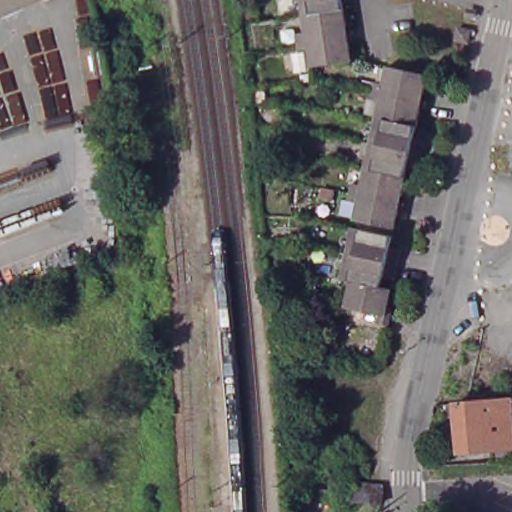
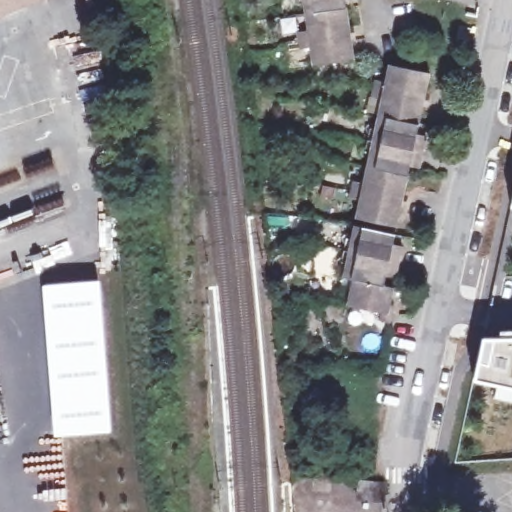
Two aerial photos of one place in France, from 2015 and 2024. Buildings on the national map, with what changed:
unchanged [(0,17),(0,0),(40,0),(0,17)]
unchanged [(312,48),(301,49),(299,32),(309,31),(304,0),(346,0),(355,59),(314,65),(312,48)]
unchanged [(464,27),(475,29),(472,40),(461,37),(464,27)]
unchanged [(361,204),(350,202),(355,185),(365,188),(384,103),(373,100),(377,83),(387,86),(391,69),(432,77),(418,138),(428,140),(422,172),(412,170),(397,231),(357,221),(361,204)]
new [(511,206),(512,201),(512,206),(511,206)]
unchanged [(394,318),(392,328),(381,325),(382,317),(349,309),(355,284),(344,282),(355,230),(396,239),(395,249),(404,251),(391,310),(395,311),(394,318)]
new [(100,278),(105,333),(112,431),(52,436),(40,282),(100,278)]
new [(482,338),(512,338),(512,388),(473,378),(482,338)]
demolished [(463,399),(509,396),(512,446),(512,458),(490,459),(490,448),(457,450),(454,400),(463,399)]
unchanged [(387,485),(385,501),(359,497),(360,482),(387,485)]

